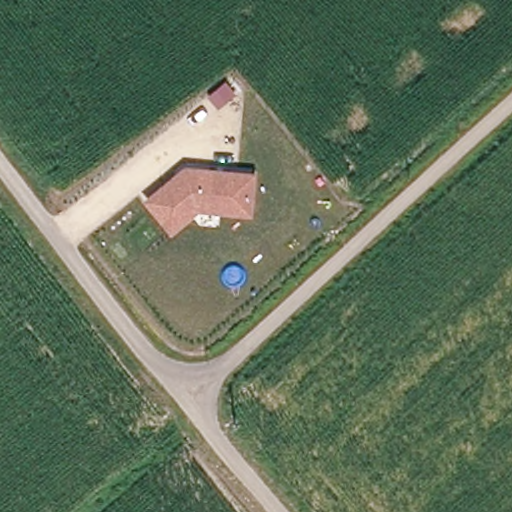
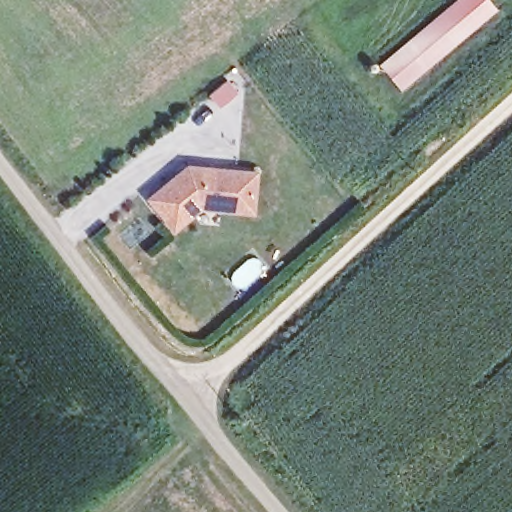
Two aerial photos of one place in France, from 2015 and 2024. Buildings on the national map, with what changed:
new [(400,94),(377,70),(459,0),(481,0),(492,13),(400,94)]
unchanged [(258,171),(253,217),(201,209),(171,234),(145,198),(185,164),(258,171)]

